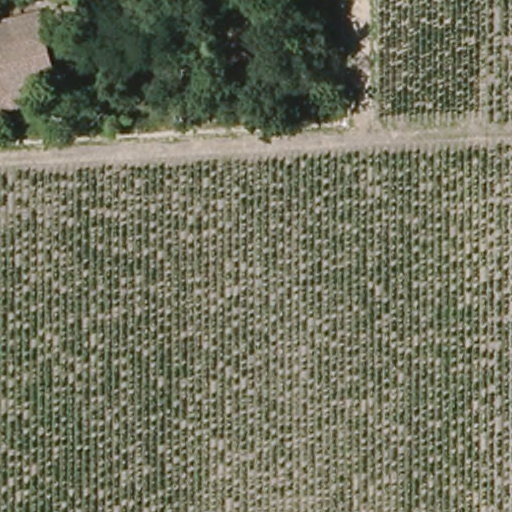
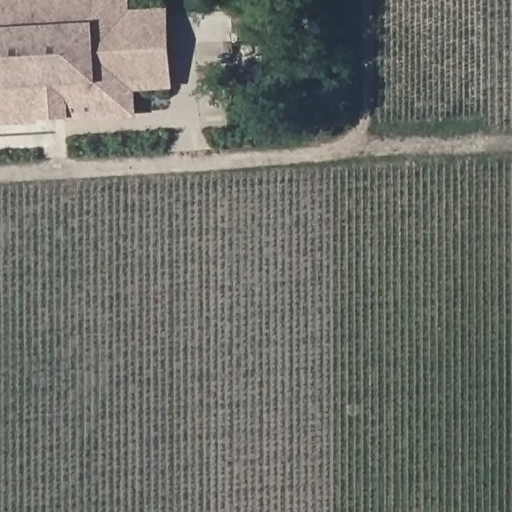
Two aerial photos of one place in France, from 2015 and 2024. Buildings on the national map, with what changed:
new [(168,8),(173,89),(134,92),(135,117),(67,121),(67,117),(40,118),(40,122),(0,125),(0,0),(128,0),(129,10),(168,8)]
demolished [(0,27),(39,17),(53,75),(0,88),(0,27)]

